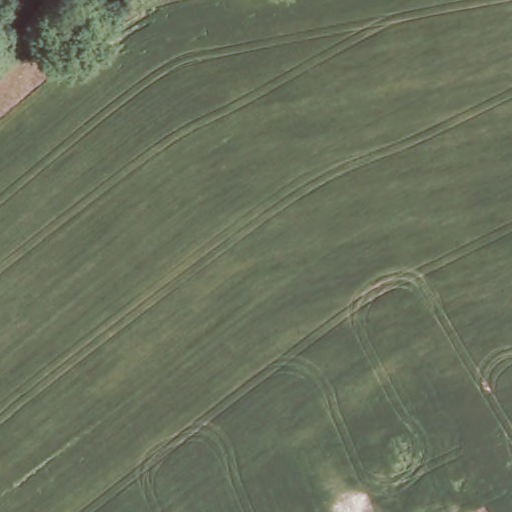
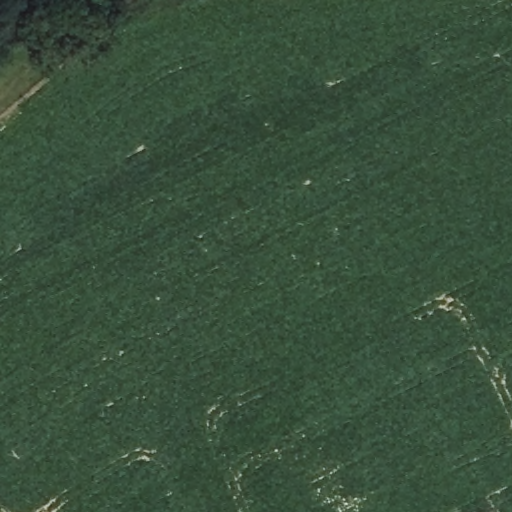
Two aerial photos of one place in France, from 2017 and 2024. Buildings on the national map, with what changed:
[]

